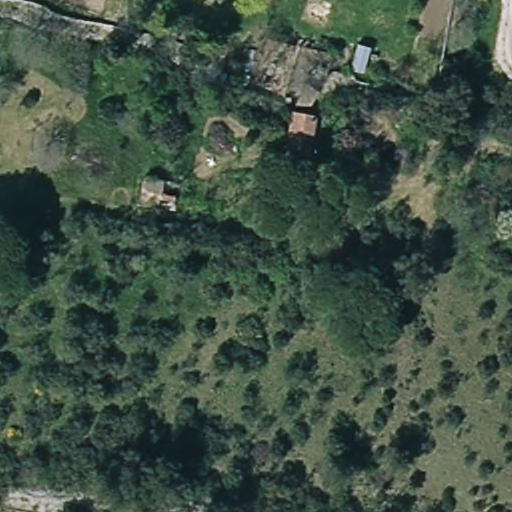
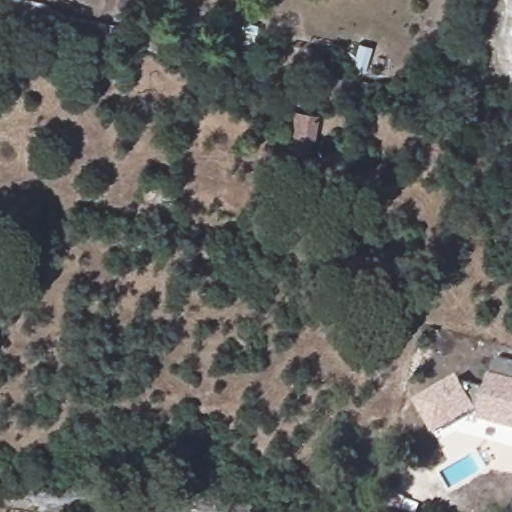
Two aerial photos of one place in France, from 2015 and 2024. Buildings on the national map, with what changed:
unchanged [(315,121),(315,119),(310,148),(286,144),(292,114),(315,121)]
new [(462,386),(485,391),(488,375),(494,360),(512,364),(512,432),(476,422),(478,411),(475,410),(472,414),(432,437),(413,403),(456,377),(462,386)]

